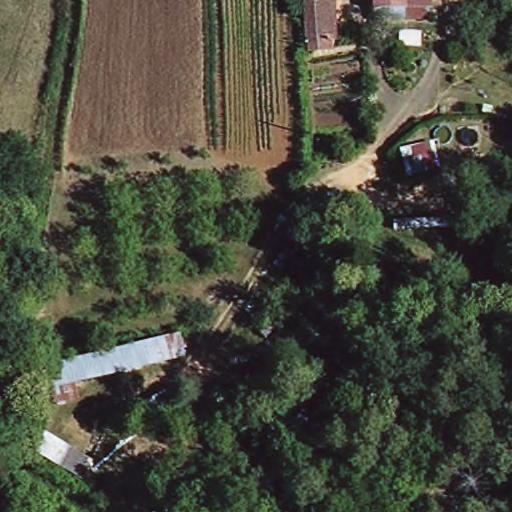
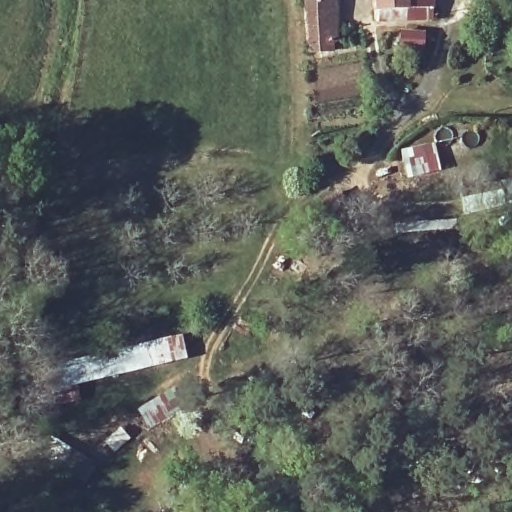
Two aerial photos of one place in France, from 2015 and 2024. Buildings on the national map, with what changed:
unchanged [(339,39),(305,43),(302,0),(338,0),(339,39)]
unchanged [(402,7),(369,6),(369,0),(402,0),(402,7)]
unchanged [(402,7),(402,0),(433,0),(433,7),(402,7)]
unchanged [(353,211),(305,242),(293,216),(339,187),(353,211)]
unchanged [(171,361),(53,390),(45,365),(165,336),(171,361)]

